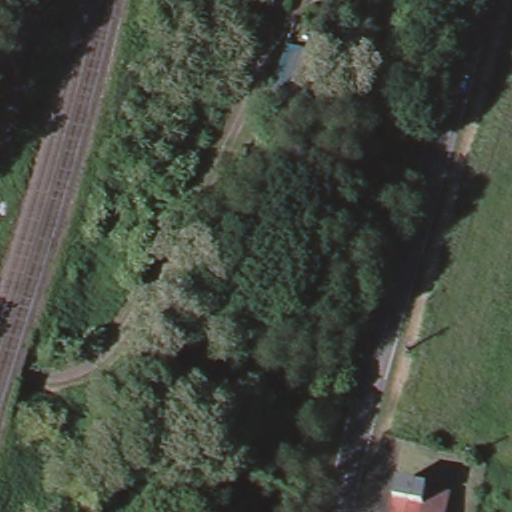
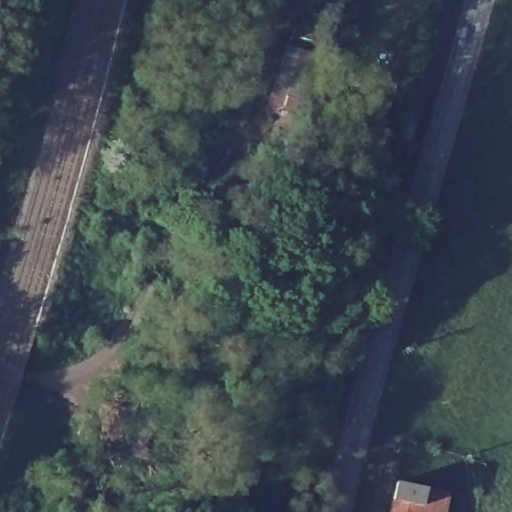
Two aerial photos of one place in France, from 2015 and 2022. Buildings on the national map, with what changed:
unchanged [(394,481),(428,488),(453,492),(448,512),(388,512),(390,503),(394,481)]

